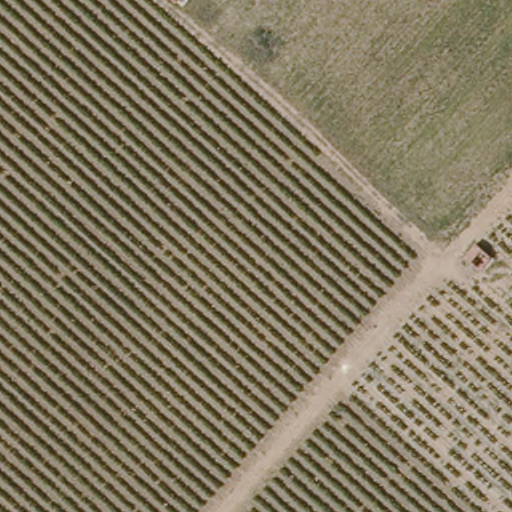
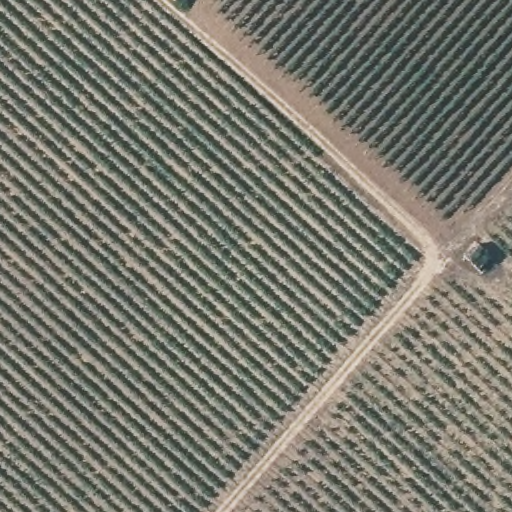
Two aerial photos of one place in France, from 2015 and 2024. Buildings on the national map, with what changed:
unchanged [(169,0),(176,0),(173,4),(169,0)]
unchanged [(474,267),(459,252),(476,241),(487,255),(474,267)]

